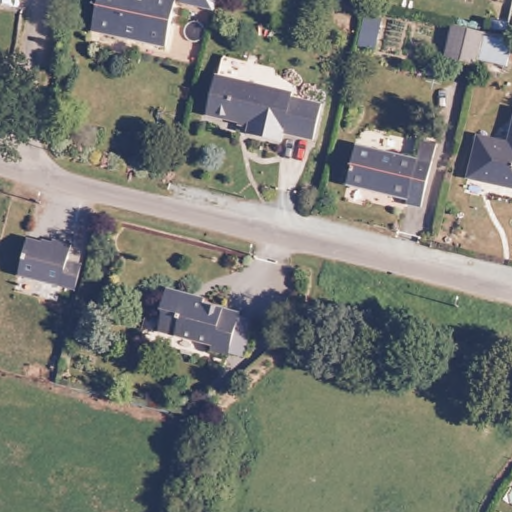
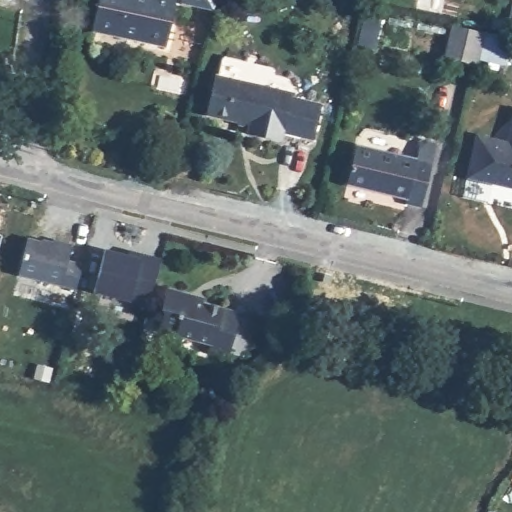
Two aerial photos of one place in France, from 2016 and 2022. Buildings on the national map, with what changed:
unchanged [(90,25),(96,0),(172,0),(162,41),(90,25)]
unchanged [(216,0),(213,10),(171,0),(172,0),(216,0)]
unchanged [(354,47),(364,2),(385,6),(376,51),(354,47)]
unchanged [(508,35),(501,67),(471,61),(441,54),(449,23),(479,29),(504,34),(508,35)]
unchanged [(287,91),(286,94),(320,101),(313,136),(282,130),(280,137),(249,129),(251,119),(243,116),(241,121),(211,112),(219,76),(287,91)]
unchanged [(435,143),(421,205),(403,201),(405,195),(347,182),(353,144),(414,158),(417,139),(435,143)]
unchanged [(476,139),(511,148),(512,145),(512,189),(469,179),(476,139)]
unchanged [(80,284),(78,292),(64,288),(21,278),(30,240),(54,246),(55,241),(74,245),(70,261),(85,265),(80,284)]
new [(104,249),(139,257),(157,261),(148,304),(129,300),(95,292),(104,249)]
unchanged [(237,356),(222,353),(201,350),(202,343),(155,332),(158,311),(151,310),(157,291),(176,296),(176,301),(231,313),(231,315),(245,319),(237,356)]

